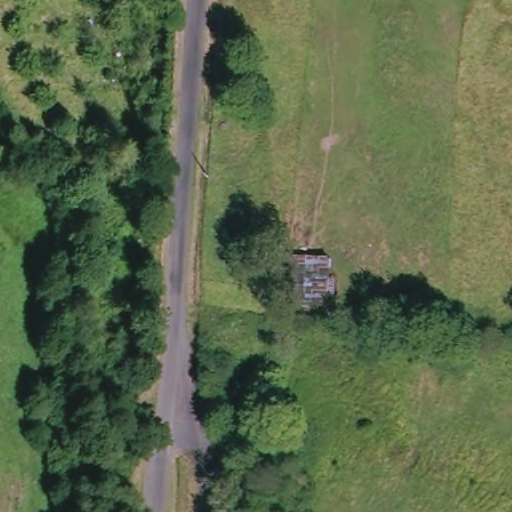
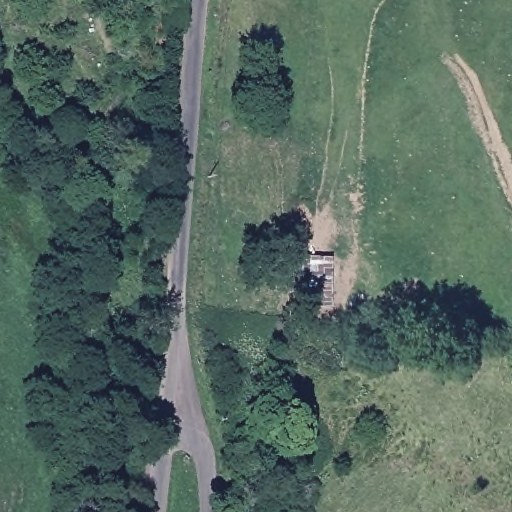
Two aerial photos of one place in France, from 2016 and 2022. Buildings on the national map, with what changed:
unchanged [(323,304),(287,305),(286,257),(326,256),(323,304)]

